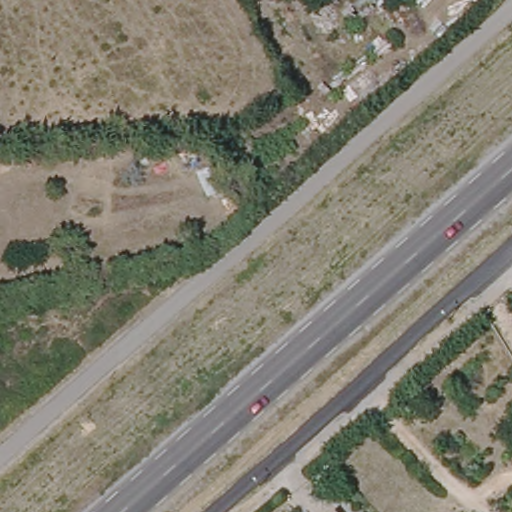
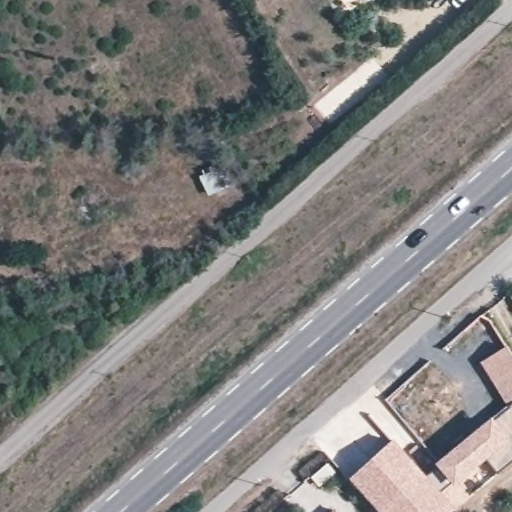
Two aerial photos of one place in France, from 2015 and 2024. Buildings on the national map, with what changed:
new [(479,361),(504,345),(512,358),(512,461),(450,512),(435,512),(415,488),(510,411),(479,361)]
new [(427,479),(415,488),(435,512),(377,512),(348,480),(391,439),(427,479)]
unchanged [(338,512),(333,512),(335,509),(338,512)]

